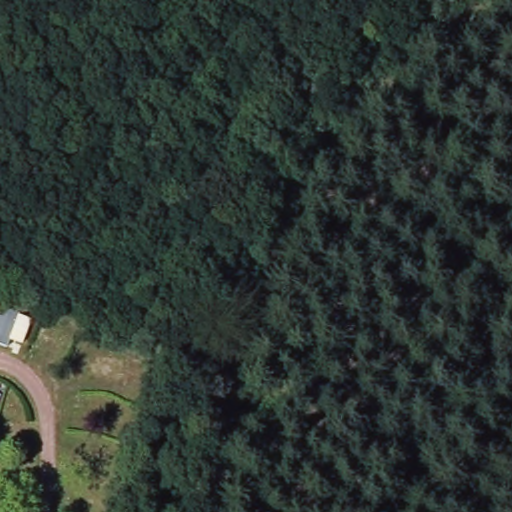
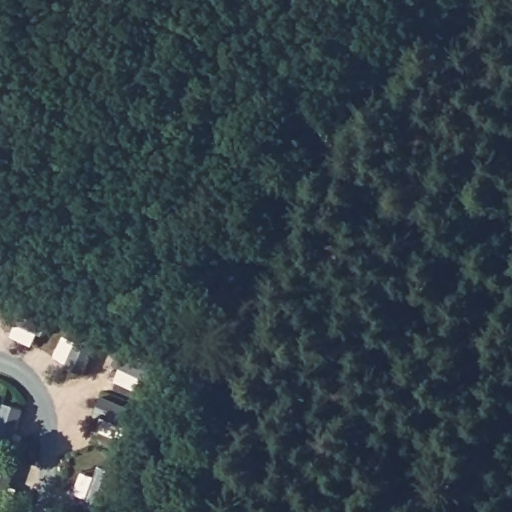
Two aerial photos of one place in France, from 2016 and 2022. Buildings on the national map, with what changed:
[]

